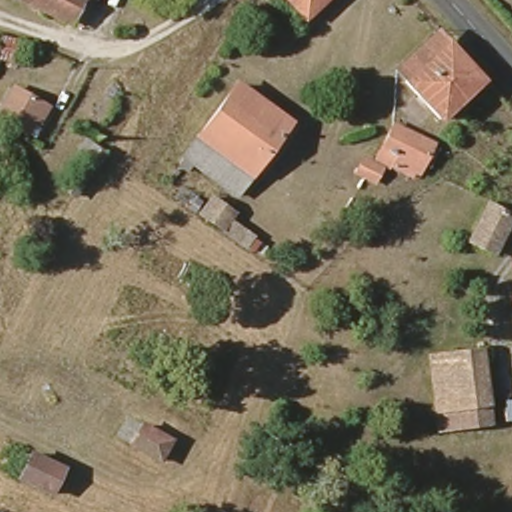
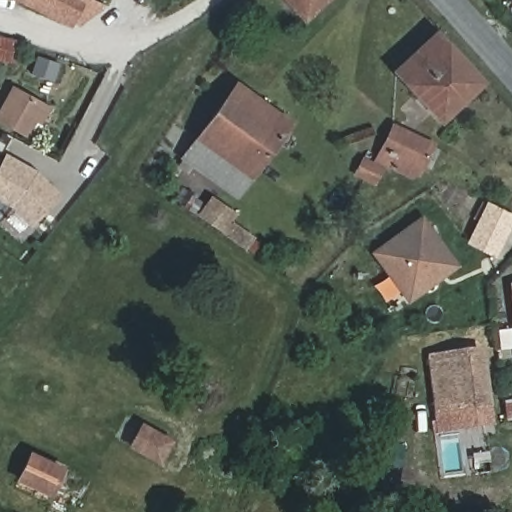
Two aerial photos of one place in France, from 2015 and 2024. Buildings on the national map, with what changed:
unchanged [(19,0),(86,0),(73,27),(19,0)]
unchanged [(288,0),(324,0),(305,18),(288,0)]
unchanged [(441,120),(407,82),(396,72),(437,34),(448,45),(482,82),(441,120)]
unchanged [(0,58),(0,37),(17,42),(13,62),(0,58)]
unchanged [(237,196),(192,162),(187,169),(180,165),(185,157),(184,157),(238,85),(290,123),(266,156),(252,174),(237,196)]
unchanged [(0,121),(0,113),(13,90),(43,106),(48,109),(39,125),(43,127),(36,141),(27,136),(0,121)]
unchanged [(422,166),(417,175),(413,173),(410,179),(376,161),(394,125),(432,145),(431,147),(439,152),(429,170),(422,166)]
new [(54,195),(25,219),(9,200),(0,195),(0,152),(32,172),(54,195)]
unchanged [(374,182),(358,174),(365,160),(382,168),(374,182)]
unchanged [(247,247),(223,231),(201,216),(213,198),(235,213),(229,221),(253,237),(247,247)]
unchanged [(496,253),(471,241),(489,203),(512,215),(512,219),(496,253)]
new [(409,303),(371,252),(423,214),(461,266),(409,303)]
unchanged [(492,424),(442,431),(432,357),(482,351),(492,424)]
unchanged [(159,461),(131,446),(142,426),(170,441),(159,461)]
unchanged [(63,470),(51,495),(19,479),(30,455),(63,470)]

